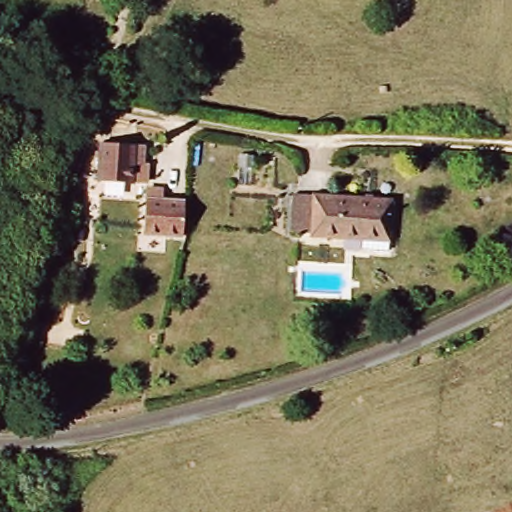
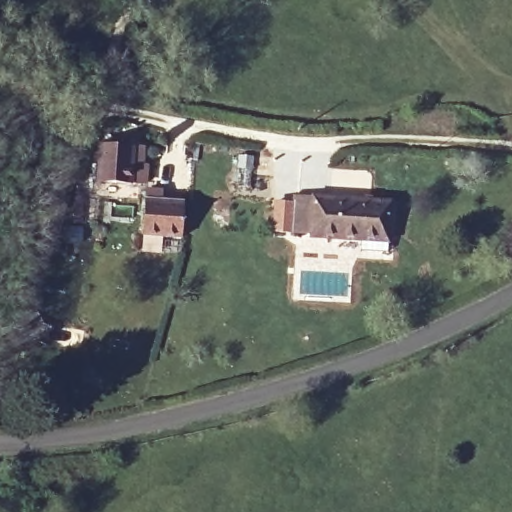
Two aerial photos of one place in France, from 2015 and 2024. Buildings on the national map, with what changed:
unchanged [(145,170),(136,170),(135,189),(98,187),(101,151),(146,151),(145,170)]
unchanged [(195,201),(193,237),(157,235),(160,189),(173,190),(175,199),(195,201)]
unchanged [(296,235),(300,197),(396,207),(392,245),(296,235)]

